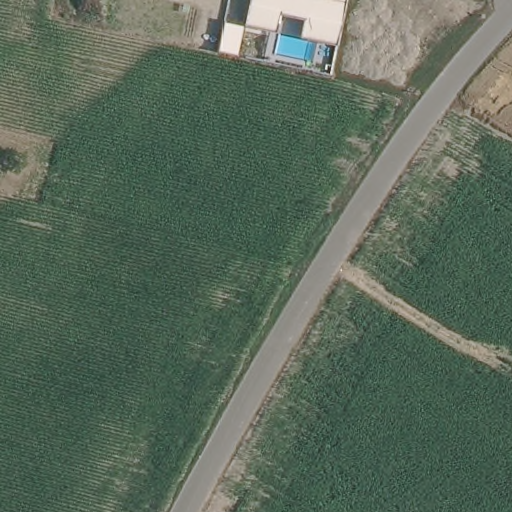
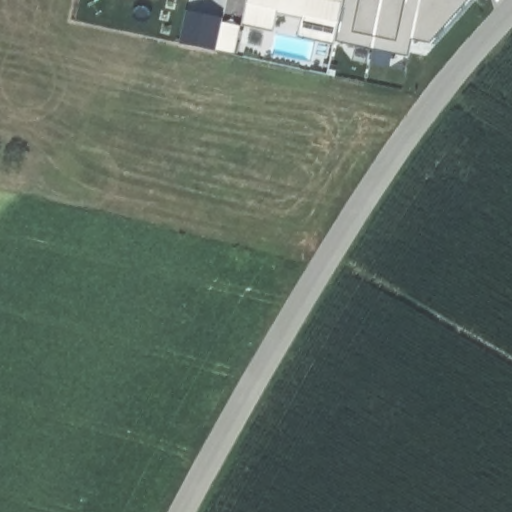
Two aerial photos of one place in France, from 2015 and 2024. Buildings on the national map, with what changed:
unchanged [(299,36),(302,20),(278,14),(275,30),(245,24),(250,0),(343,0),(335,44),(299,36)]
new [(466,0),(429,44),(409,41),(407,57),(335,44),(343,0),(466,0)]
new [(185,7),(223,16),(222,21),(241,25),(235,54),(177,42),(185,7)]

